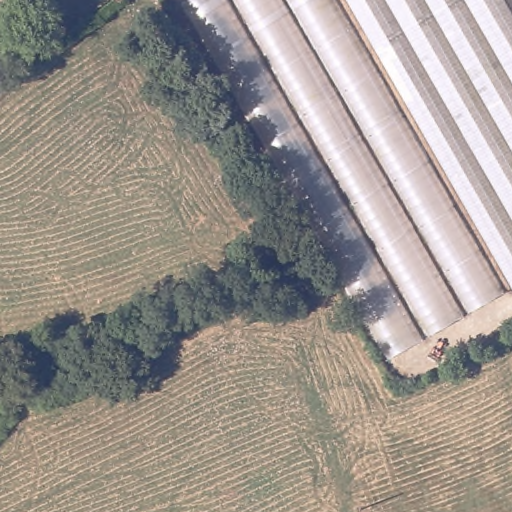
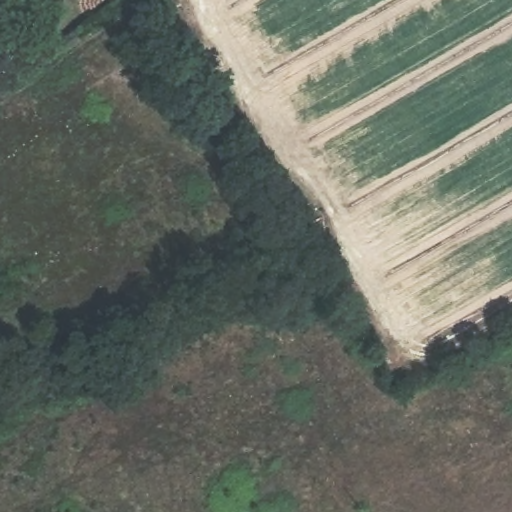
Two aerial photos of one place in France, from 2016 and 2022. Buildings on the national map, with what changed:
demolished [(512,3),(512,290),(398,357),(188,0),(510,0),(512,3)]
unchanged [(0,96),(0,76),(8,80),(0,96)]

